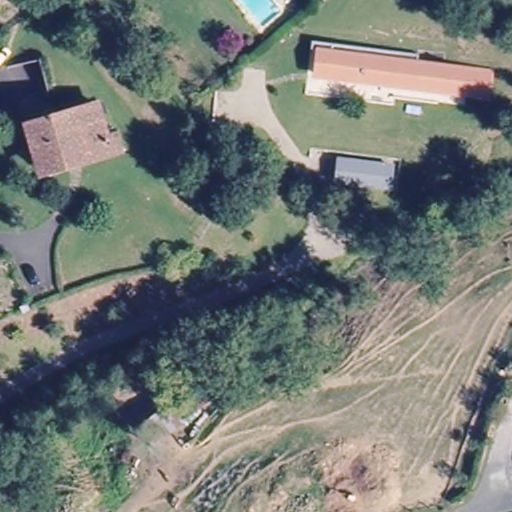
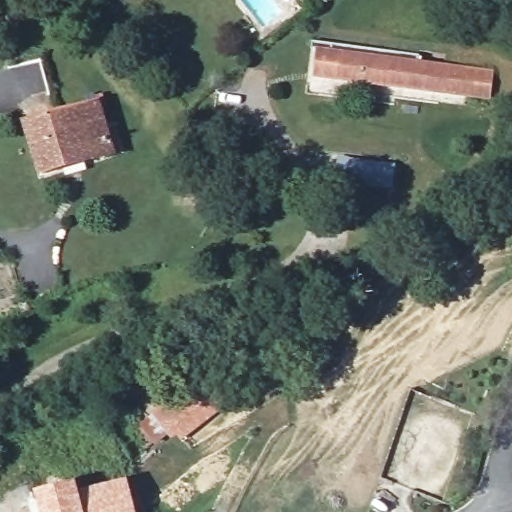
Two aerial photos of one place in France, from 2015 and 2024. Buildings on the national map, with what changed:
unchanged [(325,57),(312,56),(312,48),(421,56),(421,64),(492,68),(490,96),(323,83),(325,57)]
unchanged [(24,123),(96,101),(111,148),(39,170),(24,123)]
unchanged [(340,158),(382,161),(381,177),(338,175),(340,158)]
unchanged [(166,438),(151,417),(197,370),(215,390),(181,424),(166,438)]
new [(127,478),(136,512),(85,512),(79,490),(127,478)]
new [(76,482),(79,490),(85,512),(38,512),(34,493),(76,482)]

